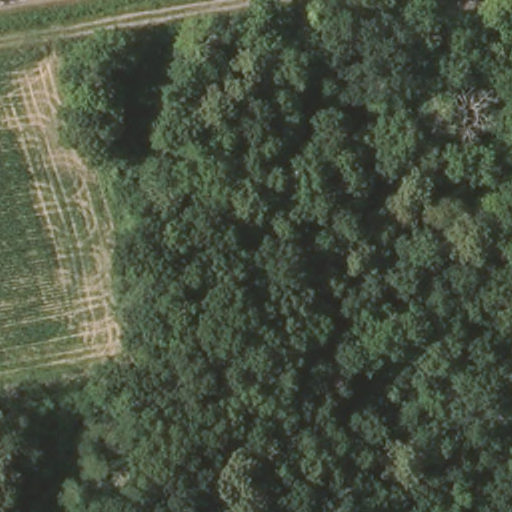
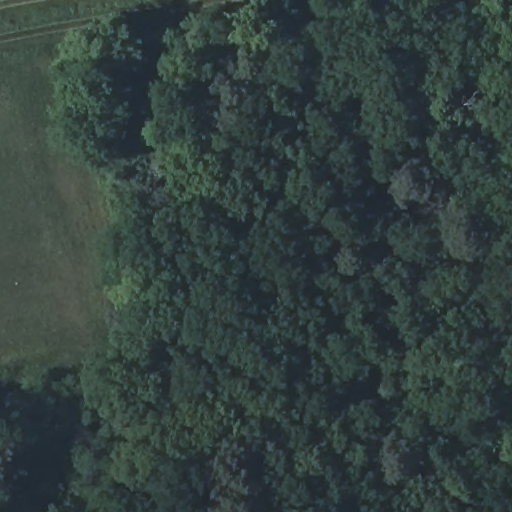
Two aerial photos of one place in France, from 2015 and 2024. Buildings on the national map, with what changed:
[]

